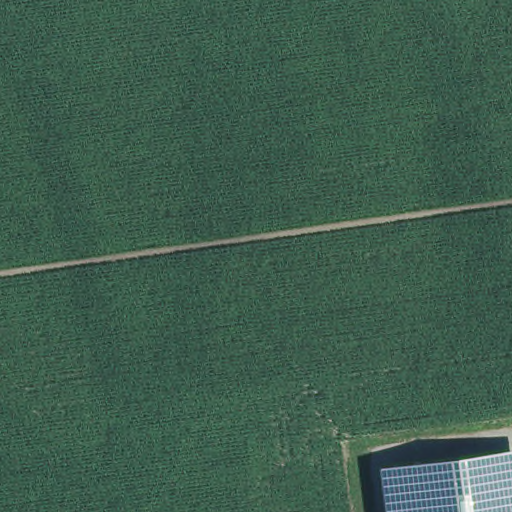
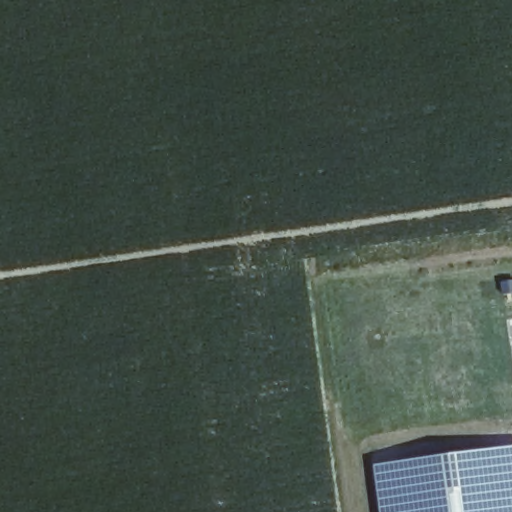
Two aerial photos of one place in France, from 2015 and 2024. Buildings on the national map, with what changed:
unchanged [(377,468),(512,449),(512,512),(383,512),(377,468)]

